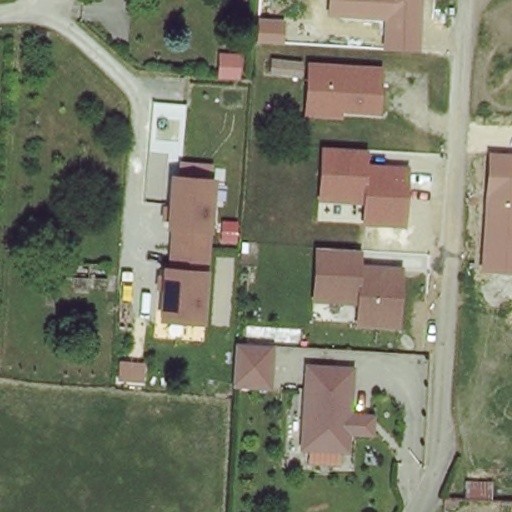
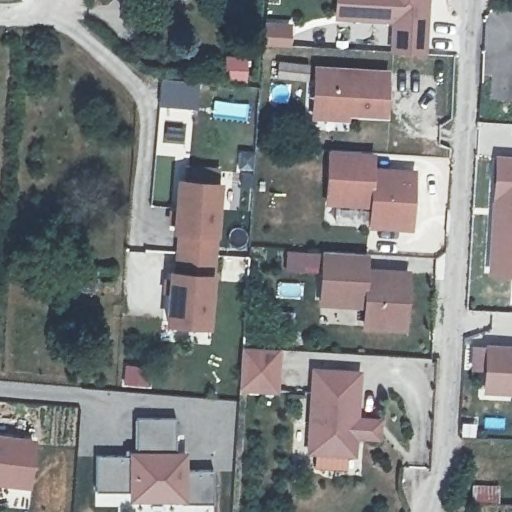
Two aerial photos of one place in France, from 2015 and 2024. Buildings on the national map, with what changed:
unchanged [(425,55),(390,53),(391,23),(333,18),(334,0),(428,0),(425,55)]
unchanged [(278,55),(309,59),(307,80),(275,77),(278,55)]
unchanged [(387,119),(350,117),(350,124),(311,122),(315,65),(392,70),(387,119)]
unchanged [(413,228),(329,224),(333,152),(375,154),(374,172),(415,174),(413,228)]
unchanged [(512,156),(512,276),(489,274),(494,155),(512,156)]
unchanged [(212,329),(165,326),(170,271),(176,271),(179,234),(173,234),(176,178),(223,182),(212,329)]
new [(50,243),(115,247),(111,262),(48,258),(50,243)]
unchanged [(408,333),(363,331),(364,310),(320,308),(324,250),(370,253),(369,269),(412,270),(408,333)]
new [(483,392),(484,370),(472,370),(472,347),(486,348),(486,343),(512,344),(512,394),(483,392)]
unchanged [(244,345),(275,346),(274,389),(241,387),(244,345)]
unchanged [(355,370),(356,450),(316,451),(315,372),(355,370)]
new [(186,501),(129,500),(129,491),(96,490),(96,456),(130,457),(130,452),(136,452),(137,418),(174,419),(175,453),(186,454),(186,471),(213,472),(212,502),(186,501)]
new [(36,476),(0,472),(0,422),(43,427),(36,476)]
unchanged [(474,482),(499,482),(498,505),(475,505),(474,482)]

